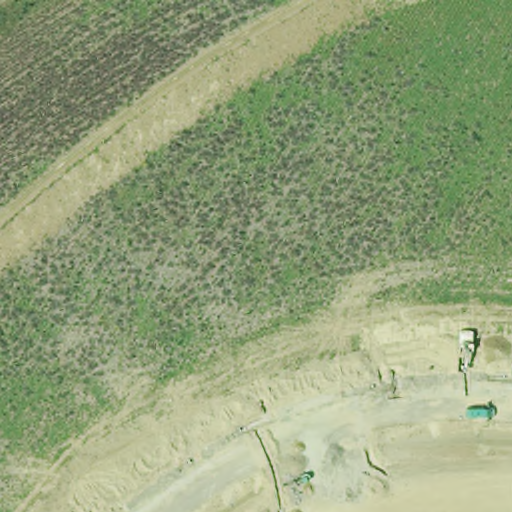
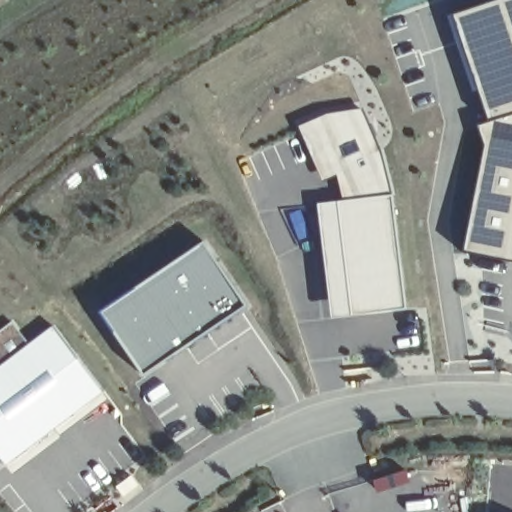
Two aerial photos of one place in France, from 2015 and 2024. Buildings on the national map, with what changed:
new [(512,0),(512,259),(460,249),(484,150),(475,123),(486,120),(448,12),(489,0),(512,0)]
new [(326,114),(361,105),(384,154),(390,175),(394,194),(341,199),(335,176),(321,181),(298,125),(326,114)]
new [(341,199),(394,194),(407,310),(331,320),(316,202),(341,199)]
new [(144,377),(100,312),(205,242),(248,307),(144,377)]
new [(28,342),(0,364),(0,329),(9,321),(28,342)]
new [(52,324),(105,392),(5,466),(0,459),(0,364),(28,342),(52,324)]

